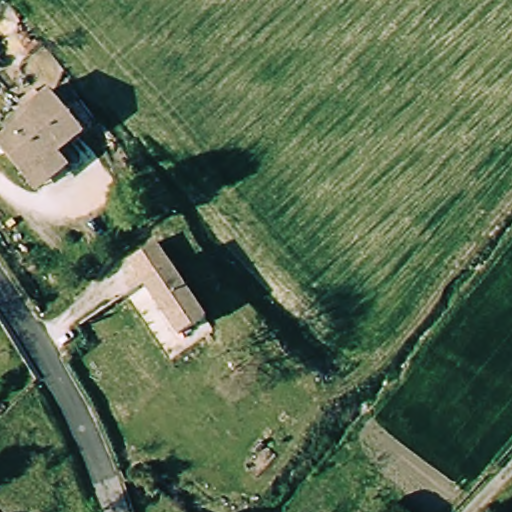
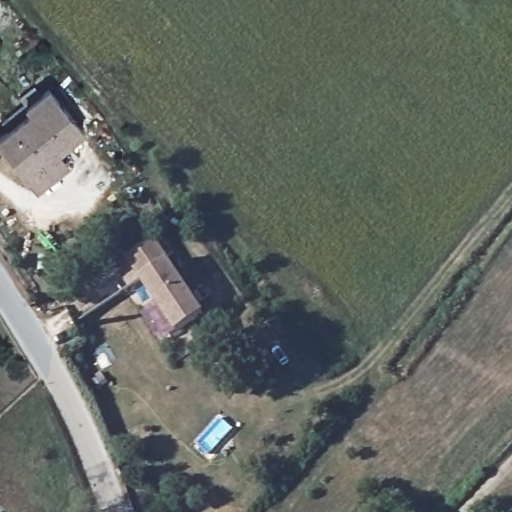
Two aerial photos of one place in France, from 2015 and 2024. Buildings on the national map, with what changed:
unchanged [(21,176),(0,145),(0,143),(31,122),(24,110),(50,93),(80,134),(76,139),(59,151),(70,167),(34,191),(21,176)]
unchanged [(157,238),(208,313),(182,331),(130,256),(157,238)]

